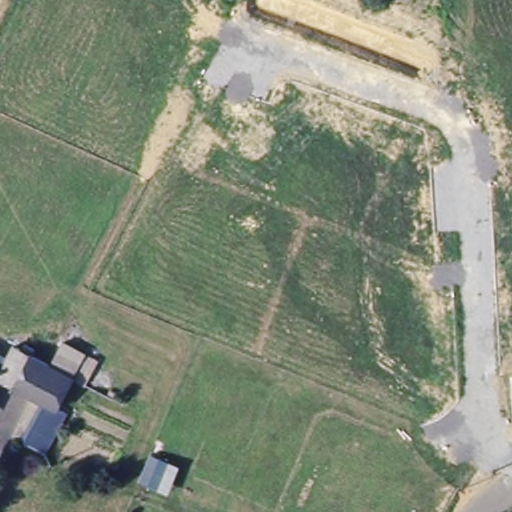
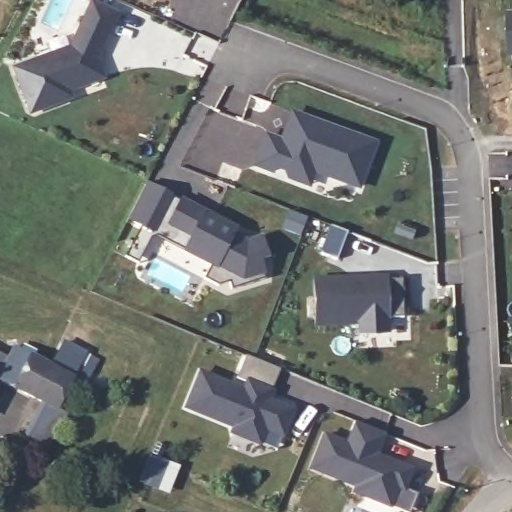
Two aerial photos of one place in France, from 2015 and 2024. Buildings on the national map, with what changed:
new [(70,88),(73,95),(37,109),(32,107),(16,67),(73,45),(88,14),(94,0),(119,11),(112,25),(101,49),(97,55),(103,69),(105,75),(85,82),(70,88)]
new [(512,20),(512,50),(510,20),(512,20)]
new [(292,175),(289,167),(277,163),(275,169),(259,163),(270,134),(285,139),(290,126),(295,111),(304,114),(377,141),(361,184),(317,168),(311,182),(292,175)]
new [(141,262),(128,255),(139,233),(144,224),(131,217),(150,182),(203,210),(212,215),(239,230),(236,235),(249,243),(264,239),(270,258),(262,260),(267,280),(233,290),(231,283),(220,286),(206,278),(214,263),(188,249),(188,248),(156,230),(151,240),(153,240),(141,262)]
new [(334,224),(350,230),(340,258),(324,252),(334,224)]
new [(387,276),(387,278),(404,277),(404,316),(387,316),(388,330),(361,330),(361,320),(317,321),(317,277),(387,276)]
unchanged [(10,360),(17,346),(51,365),(63,344),(85,356),(98,363),(88,385),(74,378),(58,408),(66,412),(46,452),(28,442),(48,402),(30,392),(3,376),(0,383),(0,354),(10,360)]
new [(260,442),(233,431),(235,426),(187,406),(201,373),(245,390),(249,382),(237,377),(247,355),(281,368),(272,391),(268,400),(293,410),(284,435),(278,450),(260,442)]
new [(413,512),(408,512),(392,505),(357,491),(359,485),(314,466),(327,434),(350,444),(359,421),(387,433),(378,455),(413,470),(406,488),(406,487),(420,493),(413,512)]
unchanged [(160,486),(142,480),(153,455),(170,462),(160,486)]

